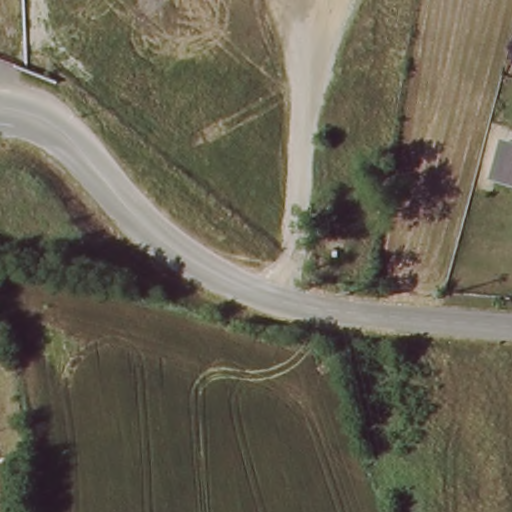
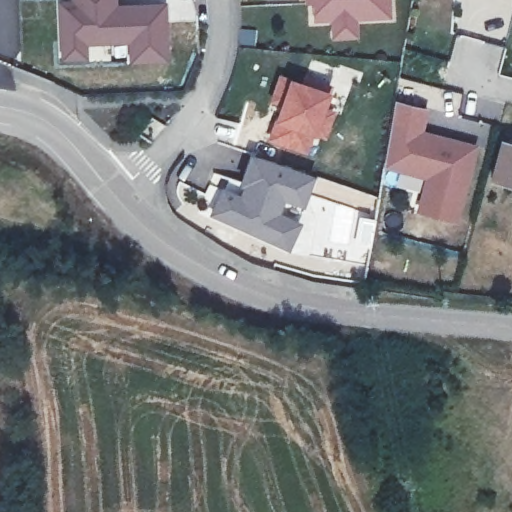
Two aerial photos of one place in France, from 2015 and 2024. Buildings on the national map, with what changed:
new [(117,3),(164,2),(168,60),(128,64),(127,43),(89,45),(88,60),(60,61),(58,0),(116,0),(117,3)]
new [(396,15),(360,14),(359,33),(333,33),(333,19),(319,20),(319,0),(396,0),(396,15)]
new [(284,104),(271,99),(279,76),(301,84),(310,59),(335,67),(336,63),(363,73),(360,82),(353,81),(341,115),(337,113),(328,141),(321,139),(316,154),(270,136),(284,104)]
new [(390,122),(477,144),(457,223),(415,212),(424,179),(384,167),(390,122)]
unchanged [(494,176),(503,140),(512,142),(512,181),(494,176)]
new [(225,176),(239,182),(250,154),(313,177),(285,247),(211,212),(225,176)]

